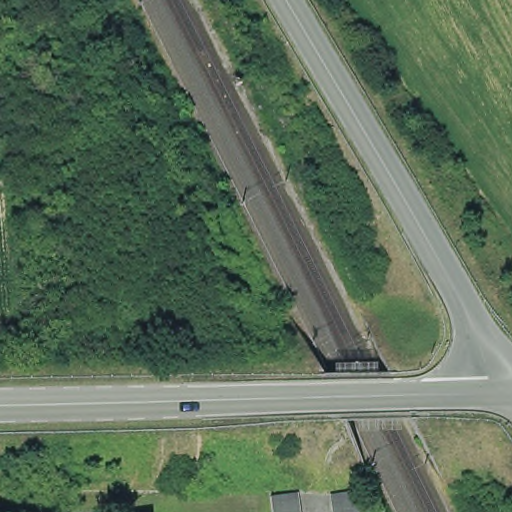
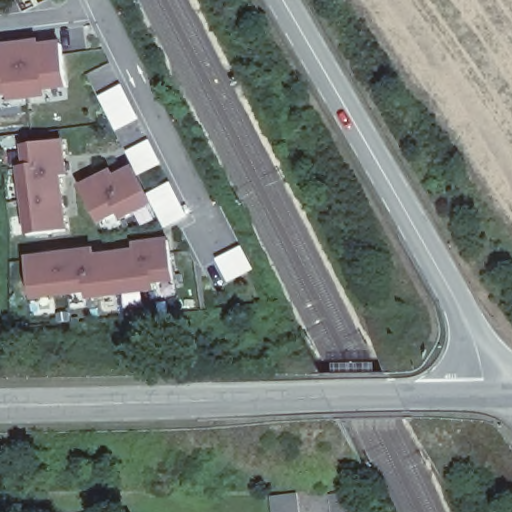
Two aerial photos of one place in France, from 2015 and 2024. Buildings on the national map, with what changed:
new [(45,90),(45,97),(10,102),(8,95),(0,96),(0,53),(4,52),(3,48),(39,43),(40,48),(61,45),(67,88),(45,90)]
new [(66,141),(71,177),(63,178),(70,232),(27,237),(19,168),(25,167),(22,145),(66,141)]
new [(122,223),(118,217),(100,226),(80,186),(112,170),(115,176),(133,167),(155,207),(122,223)]
new [(176,283),(155,286),(157,292),(87,301),(86,294),(32,301),(25,257),(95,249),(97,255),(133,251),(132,244),(170,239),(176,283)]
unchanged [(361,512),(331,512),(328,493),(358,490),(361,512)]
unchanged [(300,491),(303,512),(275,512),(273,495),(300,491)]

